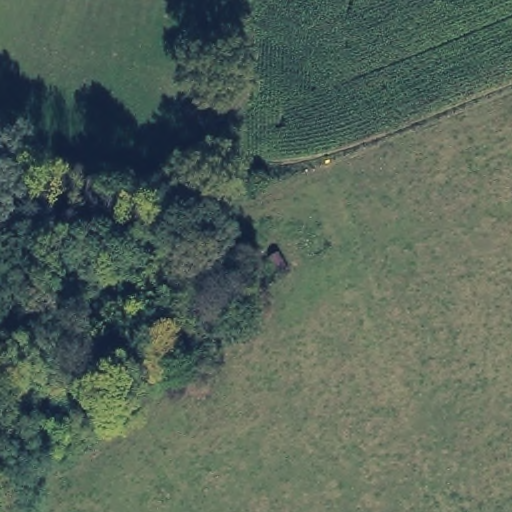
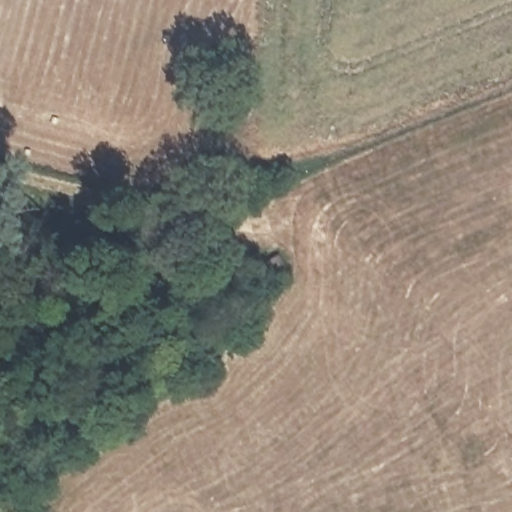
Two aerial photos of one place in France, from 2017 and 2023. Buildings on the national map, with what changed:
unchanged [(279,255),(290,283),(260,290),(251,272),(279,255)]

